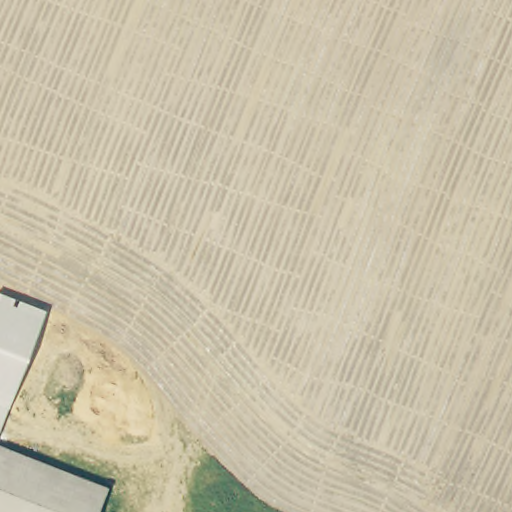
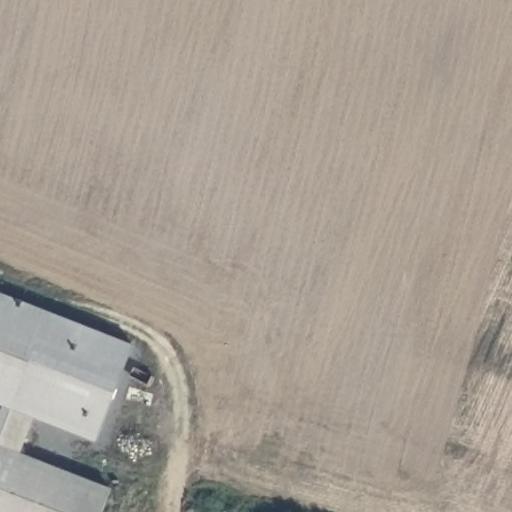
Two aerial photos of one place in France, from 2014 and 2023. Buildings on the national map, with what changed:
new [(0,293),(131,345),(93,442),(31,418),(18,448),(0,442),(0,293)]
unchanged [(99,512),(0,512),(0,442),(110,484),(99,512)]

